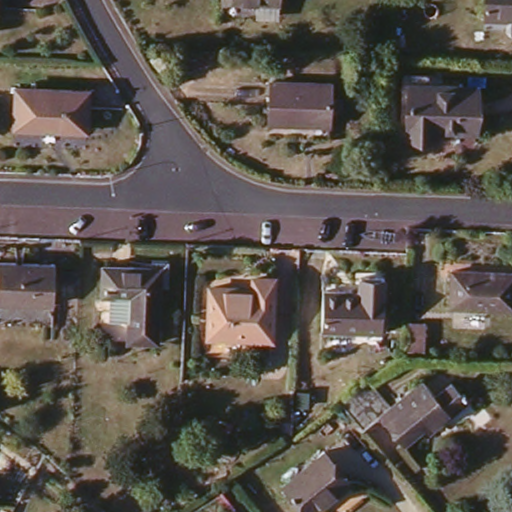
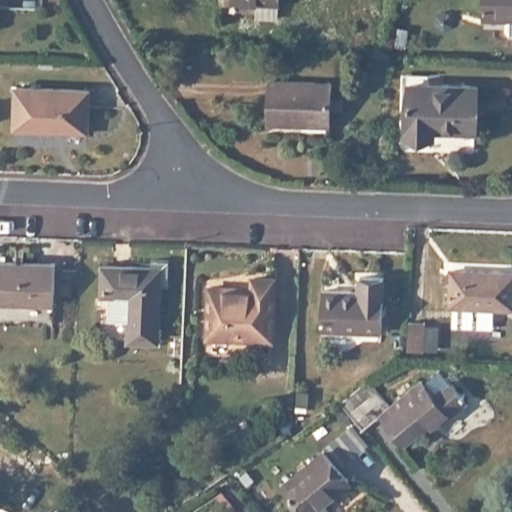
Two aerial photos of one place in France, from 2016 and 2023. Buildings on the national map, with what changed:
unchanged [(277,5),(221,3),(221,0),(277,0),(277,5)]
unchanged [(489,0),(512,0),(512,19),(488,17),(489,0)]
unchanged [(327,125),(266,123),(268,80),(328,83),(327,125)]
unchanged [(468,126),(427,125),(426,132),(402,131),(403,80),(471,82),(468,126)]
unchanged [(85,131),(13,129),(14,89),(87,92),(85,131)]
unchanged [(166,288),(159,288),(157,347),(127,345),(128,325),(107,325),(109,300),(101,300),(102,270),(150,272),(150,265),(167,265),(166,288)]
unchanged [(52,308),(0,307),(0,267),(53,270),(52,308)]
unchanged [(455,270),(512,273),(512,308),(454,305),(455,270)]
unchanged [(261,335),(237,333),(237,352),(197,350),(200,282),(243,282),(244,271),(264,272),(261,335)]
unchanged [(387,330),(328,327),(330,288),(364,289),(366,273),(389,275),(387,330)]
unchanged [(429,340),(413,340),(415,312),(430,312),(429,340)]
unchanged [(439,421),(433,415),(415,431),(390,401),(372,415),(352,390),(377,369),(400,392),(433,367),(447,383),(462,372),(477,390),(439,421)]
unchanged [(313,512),(297,512),(278,489),(319,455),(344,486),(313,512)]

